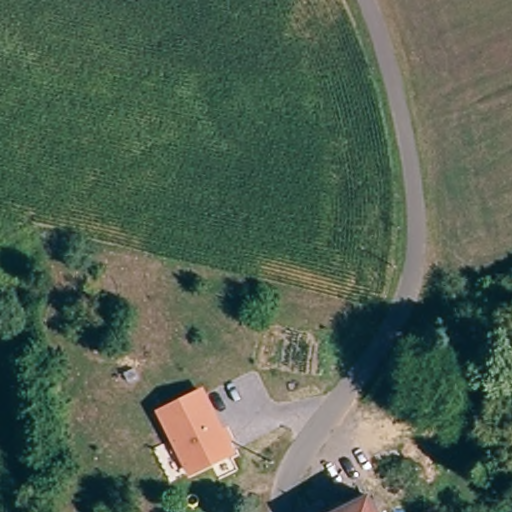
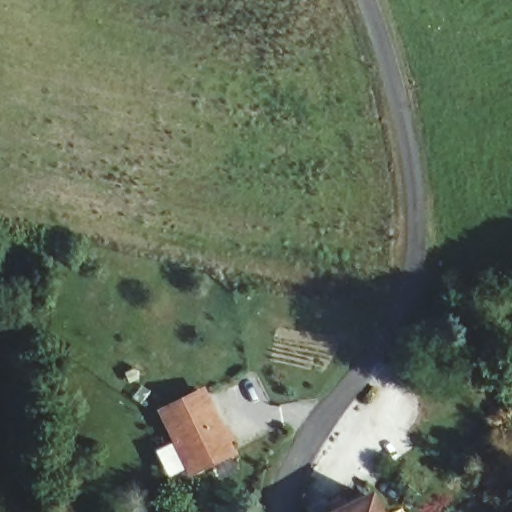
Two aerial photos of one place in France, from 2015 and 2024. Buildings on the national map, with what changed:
unchanged [(173,475),(155,435),(189,417),(209,457),(173,475)]
unchanged [(330,506),(374,486),(385,512),(314,512),(311,505),(324,497),(330,506)]

